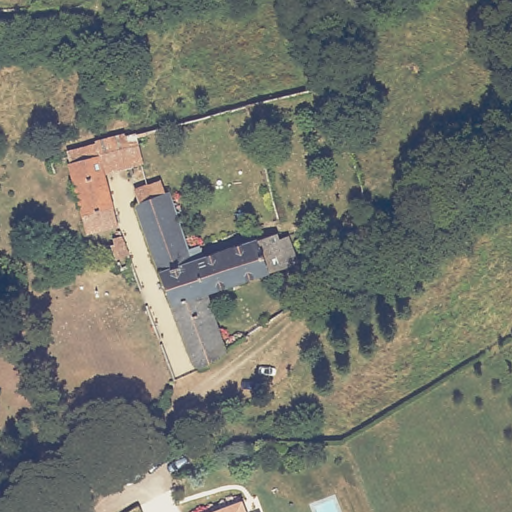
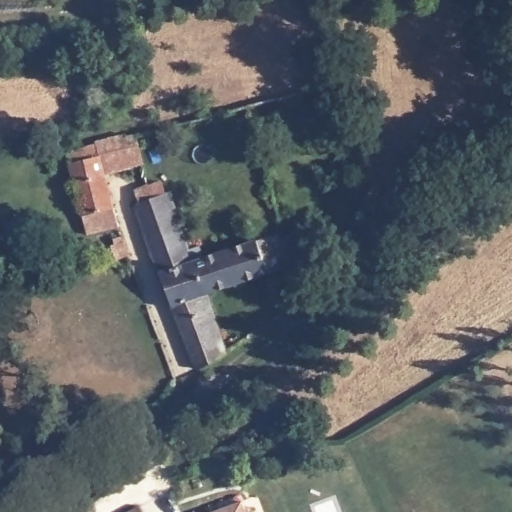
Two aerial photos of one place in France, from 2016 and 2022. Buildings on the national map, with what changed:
unchanged [(99,152),(96,140),(127,133),(127,135),(131,160),(104,167),(119,224),(86,232),(69,161),(100,154),(99,152)]
unchanged [(278,232),(289,265),(210,292),(227,352),(199,369),(160,260),(139,204),(144,202),(174,193),(197,260),(278,232)]
unchanged [(104,258),(101,249),(100,246),(103,245),(101,237),(111,234),(117,254),(104,258)]
unchanged [(244,512),(221,512),(241,504),(244,512)]

